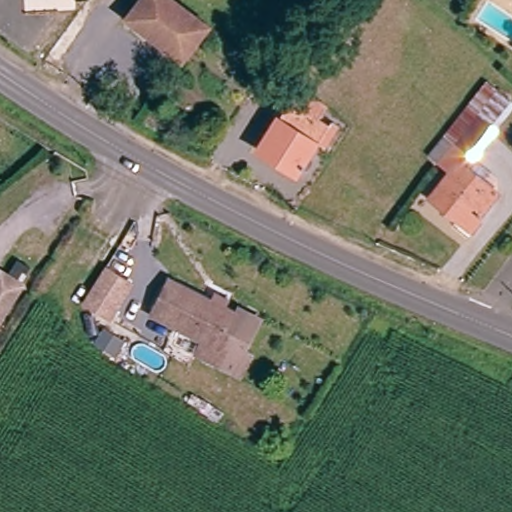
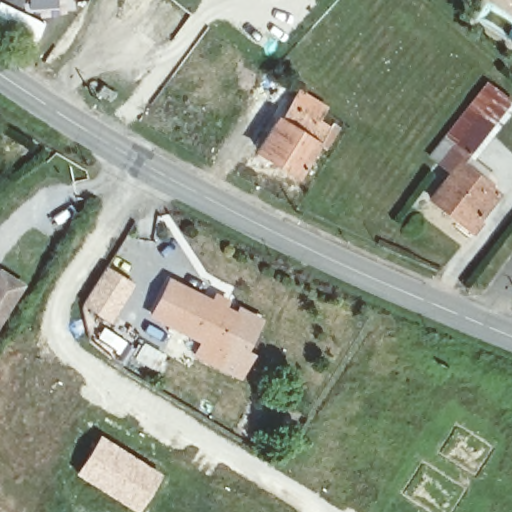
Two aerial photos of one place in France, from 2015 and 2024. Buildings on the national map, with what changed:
demolished [(171,0),(184,10),(204,24),(179,57),(122,18),(136,0),(171,0)]
unchanged [(460,107),(478,82),(501,100),(484,124),(455,164),(489,189),(468,216),(474,221),(468,229),(427,201),(446,174),(430,162),(424,158),(460,107)]
unchanged [(272,117),(278,119),(293,90),(315,110),(309,121),(332,132),(327,143),(322,146),(315,140),(295,172),(254,150),(272,117)]
unchanged [(21,280),(5,306),(0,314),(0,267),(21,280)]
unchanged [(130,284),(109,319),(84,304),(105,269),(130,284)]
unchanged [(244,351),(250,354),(237,378),(195,355),(202,341),(151,313),(170,279),(210,302),(214,295),(228,303),(224,309),(236,316),(239,311),(260,322),(244,351)]
new [(97,434),(160,473),(136,512),(135,512),(73,473),(97,434)]

